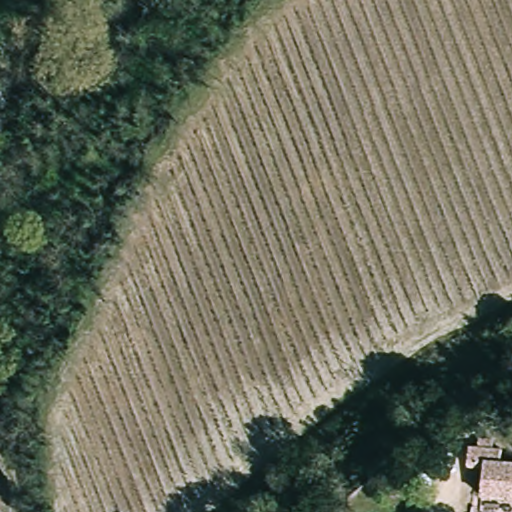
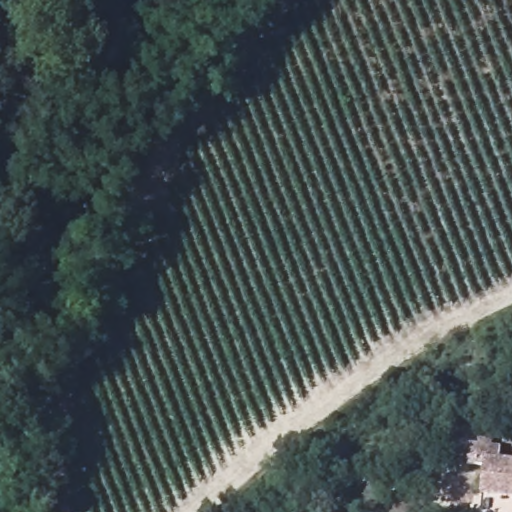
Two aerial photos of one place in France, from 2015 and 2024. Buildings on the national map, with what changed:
unchanged [(490,444),(490,453),(500,453),(500,464),(512,464),(512,497),(483,497),(483,468),(467,468),(467,454),(475,454),(475,444),(490,444)]

